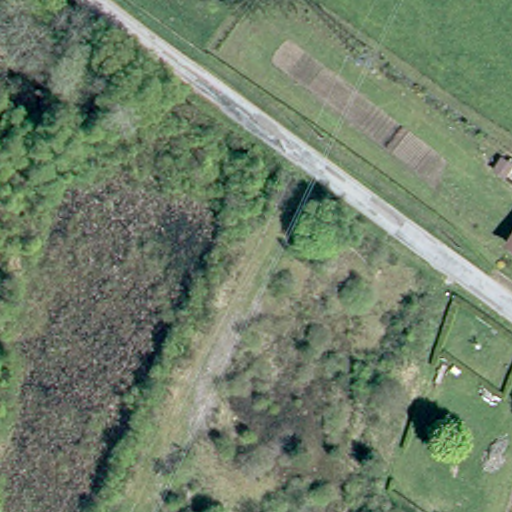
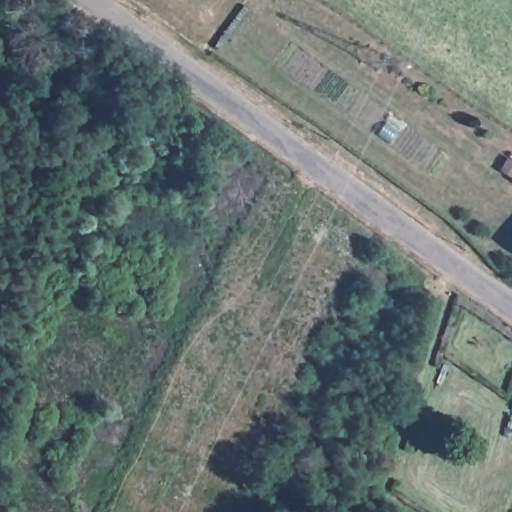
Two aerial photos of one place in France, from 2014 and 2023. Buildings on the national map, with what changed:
[]

